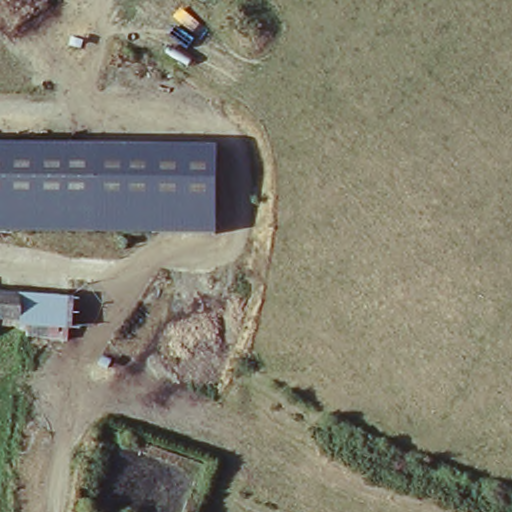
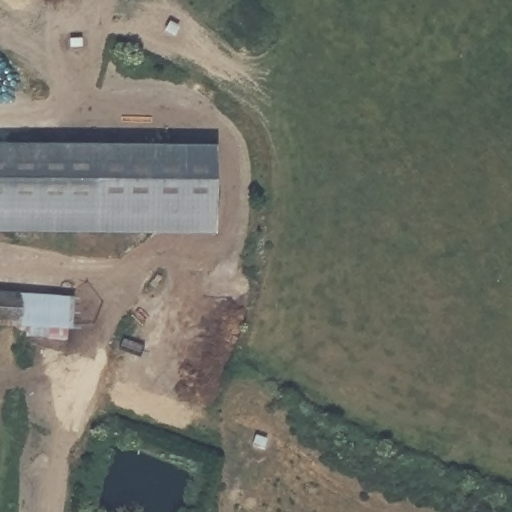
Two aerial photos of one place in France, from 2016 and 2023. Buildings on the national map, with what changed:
unchanged [(193,142),(212,142),(213,229),(150,230),(91,231),(90,144),(193,142)]
unchanged [(91,231),(0,232),(0,144),(90,144),(91,231)]
unchanged [(19,316),(0,316),(0,292),(19,293),(19,316)]
unchanged [(63,296),(63,326),(19,325),(19,316),(19,293),(63,296)]

